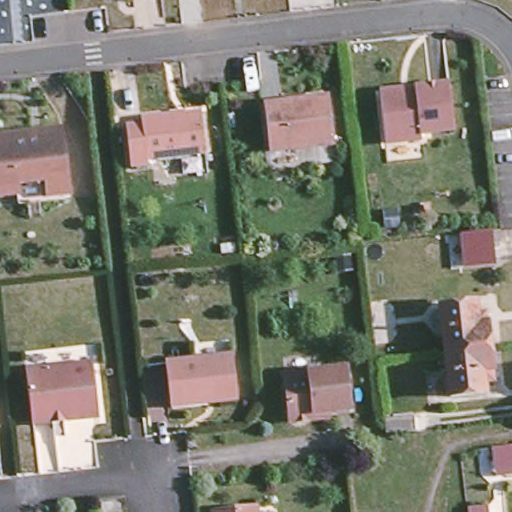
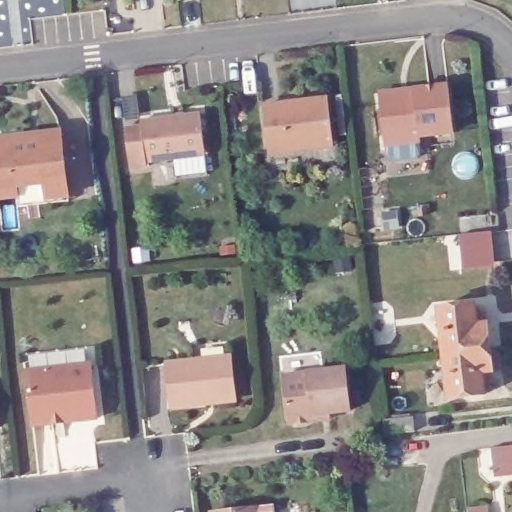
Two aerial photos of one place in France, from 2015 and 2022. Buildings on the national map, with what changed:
unchanged [(452,133),(418,138),(419,142),(383,146),(377,99),(377,94),(411,90),(446,86),(452,133)]
unchanged [(331,146),(268,154),(262,108),(325,101),(331,146)]
unchanged [(130,171),(125,130),(140,128),(140,123),(200,116),(204,157),(146,163),(147,168),(130,171)]
unchanged [(17,204),(16,193),(0,195),(0,135),(26,132),(27,137),(61,134),(67,193),(68,198),(17,204)]
unchanged [(460,235),(491,232),(494,262),(464,265),(460,235)]
unchanged [(439,310),(474,305),(476,314),(486,312),(487,324),(489,348),(444,353),(439,310)]
unchanged [(483,384),(484,394),(450,398),(444,353),(489,348),(492,373),(493,384),(483,384)]
unchanged [(235,400),(203,403),(203,407),(171,410),(166,366),(230,358),(235,400)]
unchanged [(32,427),(26,373),(90,366),(96,420),(32,427)]
unchanged [(306,423),(294,424),(288,420),(283,378),(340,372),(345,371),(350,412),(345,413),(329,415),(330,421),(306,423)]
unchanged [(414,417),(416,432),(386,436),(385,420),(414,417)]
unchanged [(492,457),(491,448),(512,445),(512,475),(494,477),(492,457)]
unchanged [(488,509),(488,512),(466,512),(466,511),(488,509)]
unchanged [(255,510),(255,512),(235,512),(255,510)]

